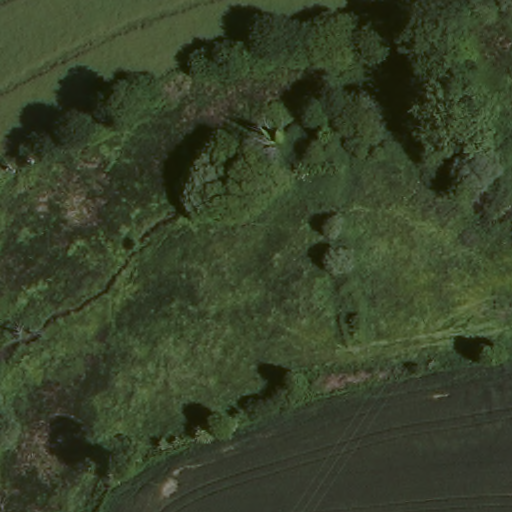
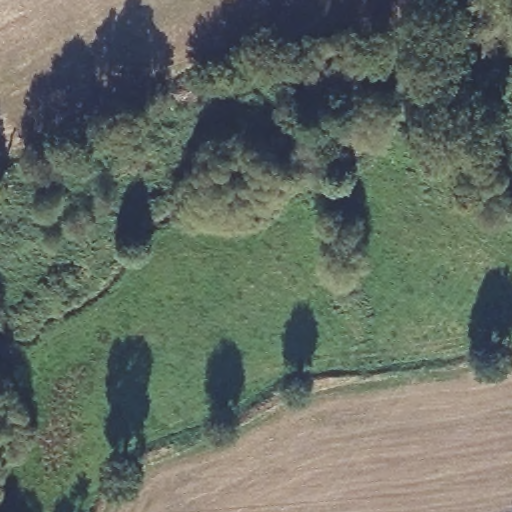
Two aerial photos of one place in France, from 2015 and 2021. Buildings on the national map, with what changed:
[]

